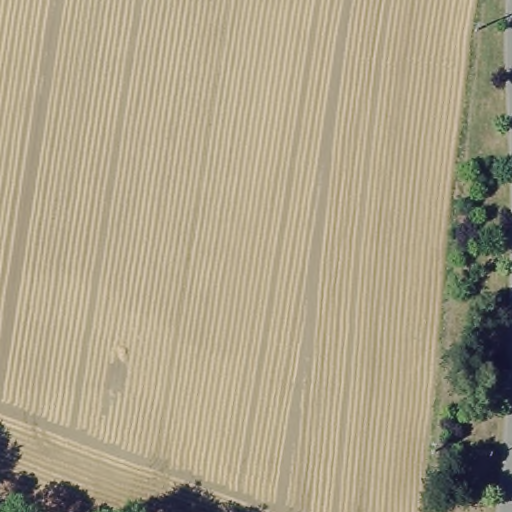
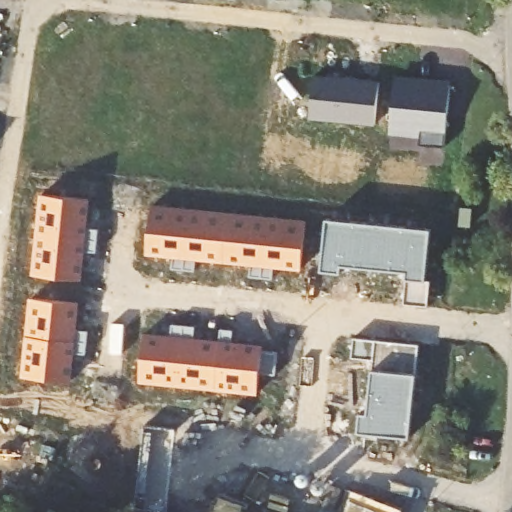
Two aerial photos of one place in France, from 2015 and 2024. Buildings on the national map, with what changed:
new [(309,119),(314,74),(378,79),(375,125),(309,119)]
new [(451,80),(444,145),(421,144),(421,138),(387,135),(395,75),(451,80)]
new [(31,274),(39,193),(91,198),(88,227),(99,228),(97,254),(86,252),(83,279),(31,274)]
new [(151,204),(305,220),(301,271),(274,269),(274,279),(251,277),(251,266),(197,262),(196,272),(172,268),(173,259),(145,255),(151,204)]
new [(432,229),(426,279),(431,280),(427,304),(406,304),(407,278),(409,270),(342,264),(341,270),(322,269),(327,218),(432,229)]
new [(80,304),(77,330),(88,331),(86,354),(74,353),(71,382),(21,377),(29,297),(80,304)]
new [(171,335),(172,324),(195,327),(195,338),(219,340),(221,329),(233,330),(232,342),(264,345),(263,351),(277,352),(275,374),(261,373),(258,396),(138,383),(144,333),(171,335)]
new [(419,344),(417,374),(410,437),(360,433),(361,414),(369,414),(374,370),(375,359),(353,358),(354,337),(419,344)]
new [(176,429),(167,512),(135,512),(145,424),(176,429)]
new [(402,512),(344,512),(352,489),(404,509),(402,512)]
new [(222,494),(244,503),(242,512),(243,512),(216,512),(222,494)]

